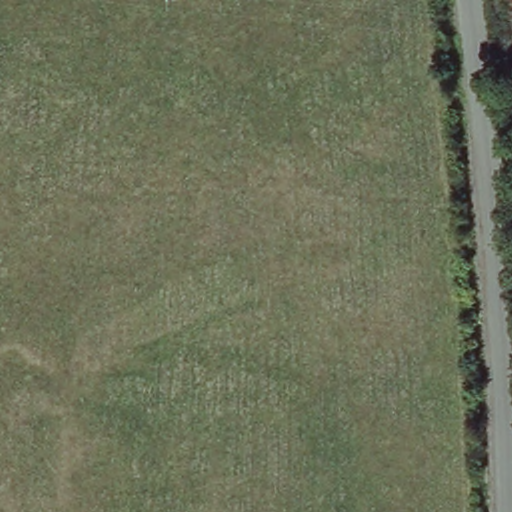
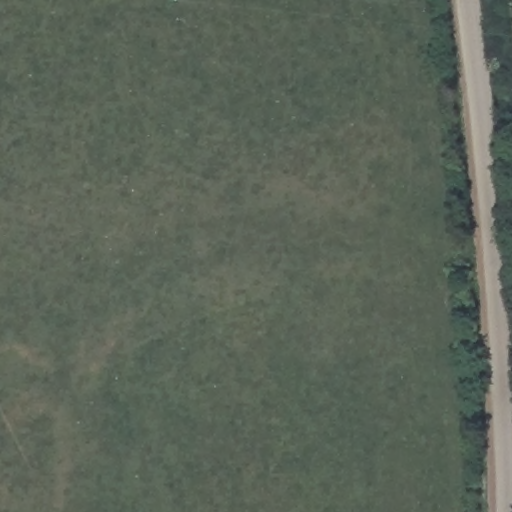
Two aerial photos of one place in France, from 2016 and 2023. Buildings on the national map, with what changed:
[]

